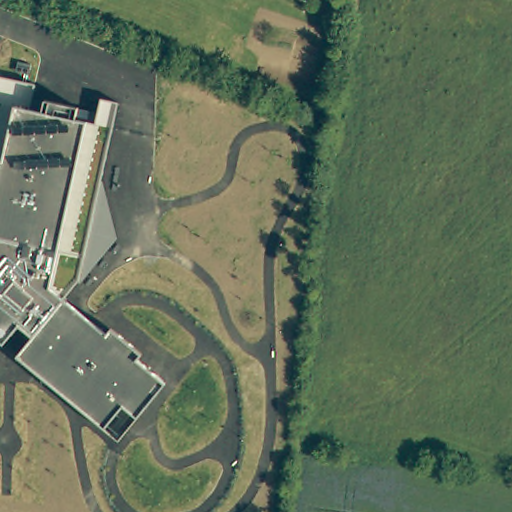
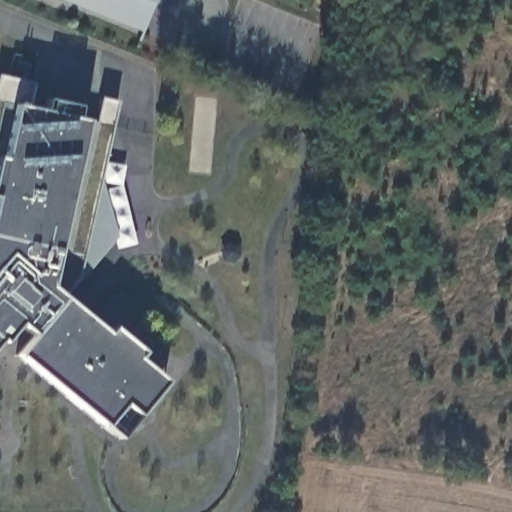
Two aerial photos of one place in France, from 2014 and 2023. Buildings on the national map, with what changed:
new [(144,33),(58,0),(156,0),(144,33)]
unchanged [(30,109),(42,112),(45,99),(79,106),(98,113),(101,97),(119,102),(101,180),(117,237),(78,281),(64,298),(106,333),(110,329),(140,355),(135,360),(164,384),(119,440),(18,355),(34,337),(18,324),(3,344),(0,343),(0,76),(36,85),(30,109)]

